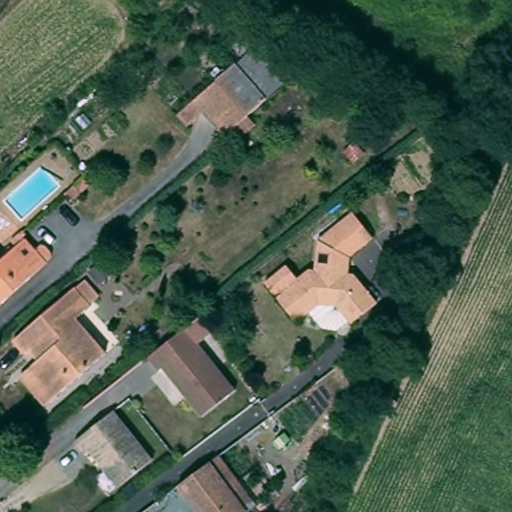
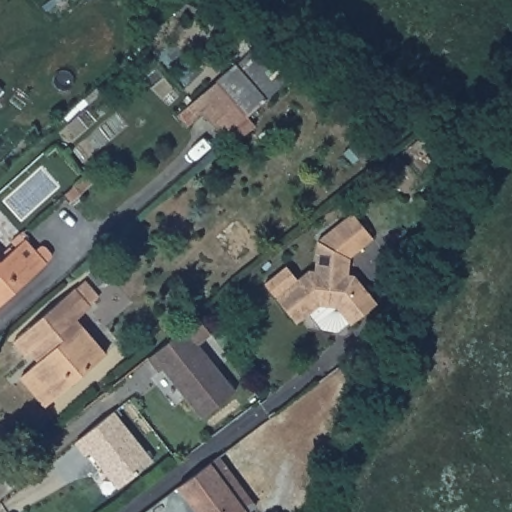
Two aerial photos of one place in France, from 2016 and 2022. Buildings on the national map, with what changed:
unchanged [(233,148),(224,139),(192,104),(236,66),(267,101),(247,118),(255,128),(233,148)]
unchanged [(317,326),(310,315),(296,326),(275,299),(309,273),(315,273),(318,243),(352,215),(372,240),(350,261),(348,276),(354,278),(360,285),(376,306),(351,327),(344,318),(332,327),(317,326)]
unchanged [(0,303),(0,258),(24,237),(34,249),(42,242),(45,243),(51,250),(52,254),(44,260),(45,262),(0,303)]
unchanged [(111,276),(99,286),(89,275),(101,265),(111,276)]
unchanged [(20,379),(31,371),(30,370),(38,363),(30,354),(25,357),(13,343),(74,291),(75,292),(84,283),(99,299),(89,308),(90,309),(77,321),(106,356),(55,400),(55,399),(45,408),(20,379)]
unchanged [(235,387),(202,413),(149,356),(186,327),(235,387)]
unchanged [(119,492),(89,456),(85,459),(74,444),(113,413),(153,464),(119,492)]
unchanged [(241,512),(242,512),(194,512),(173,484),(213,454),(250,504),(241,512)]

